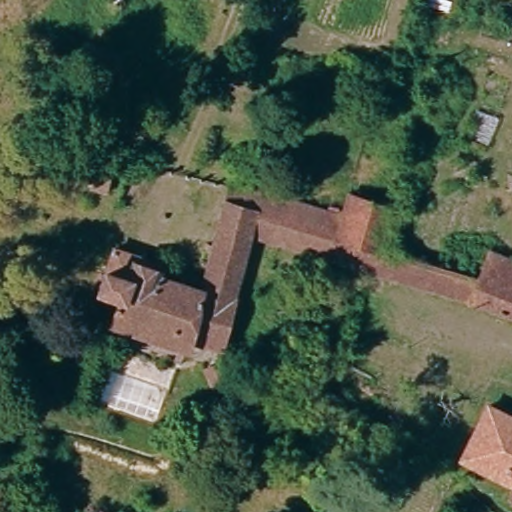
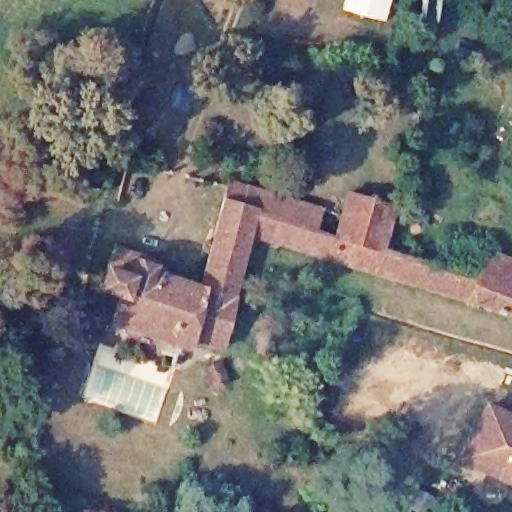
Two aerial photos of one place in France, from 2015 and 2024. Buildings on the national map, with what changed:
new [(344,10),(347,0),(391,0),(385,21),(344,10)]
unchanged [(156,276),(198,290),(226,175),(287,193),(281,217),(285,219),(279,238),(256,230),(222,353),(185,344),(181,353),(105,332),(111,306),(92,299),(105,255),(130,262),(157,270),(156,276)]
unchanged [(338,209),(345,185),(394,203),(380,242),(478,280),(471,306),(385,273),(279,238),(285,219),(281,217),(287,193),(338,209)]
unchanged [(487,257),(493,259),(512,268),(512,323),(471,306),(478,280),(487,257)]
unchanged [(153,418),(97,401),(111,356),(167,372),(153,418)]
unchanged [(463,442),(482,400),(512,415),(512,467),(511,468),(463,442)]
unchanged [(512,484),(505,480),(511,468),(512,468),(512,484)]

